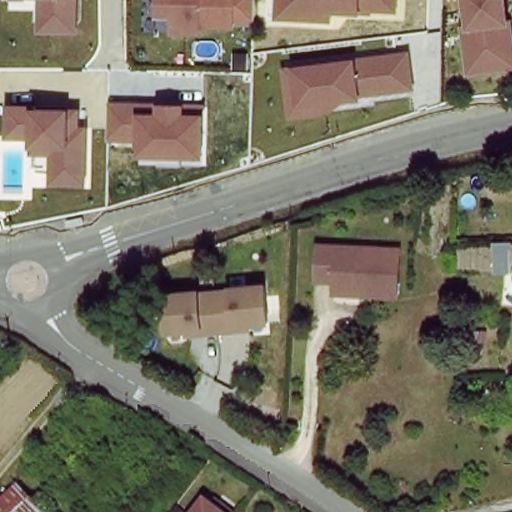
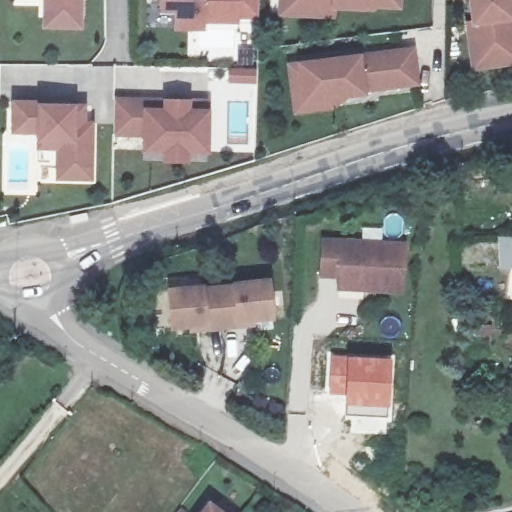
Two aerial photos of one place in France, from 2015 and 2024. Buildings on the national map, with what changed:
unchanged [(44,0),(83,0),(82,29),(44,29),(44,0)]
unchanged [(160,15),(162,0),(260,0),(258,18),(240,18),(240,26),(205,24),(205,32),(176,31),(175,16),(160,15)]
unchanged [(402,0),(401,12),(373,13),(338,10),(337,19),(279,17),(280,0),(402,0)]
unchanged [(471,23),(468,0),(512,0),(512,66),(471,71),(463,23),(471,23)]
unchanged [(284,64),(296,62),(359,54),(416,49),(421,87),(367,95),(348,98),(334,109),(294,114),(284,64)]
new [(231,81),(231,69),(256,70),(255,82),(231,81)]
unchanged [(114,98),(164,99),(190,100),(213,100),(212,111),(211,153),(142,152),(142,139),(116,138),(114,98)]
unchanged [(57,181),(57,152),(36,150),(36,138),(13,136),(13,99),(47,99),(47,104),(80,106),(87,106),(87,122),(95,123),(94,181),(57,181)]
unchanged [(341,281),(322,280),(324,245),(404,251),(401,297),(364,295),(340,293),(341,281)]
unchanged [(194,328),(173,329),(170,287),(206,284),(206,287),(235,285),(234,282),(270,280),(273,322),(253,323),(253,328),(239,329),(208,332),(194,333),(194,328)]
new [(329,353),(391,357),(389,420),(343,418),(344,395),(327,394),(329,353)]
unchanged [(213,505),(222,512),(208,512),(213,505)]

